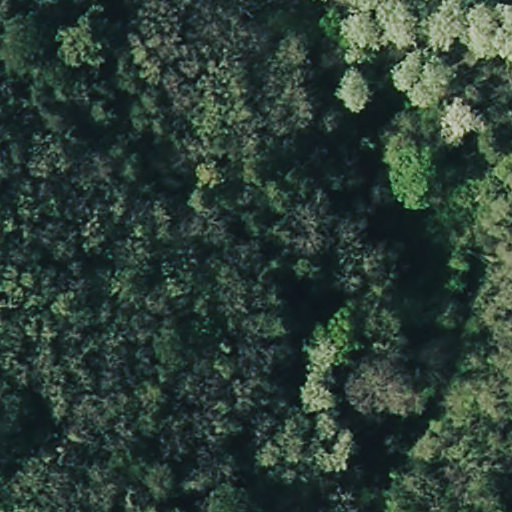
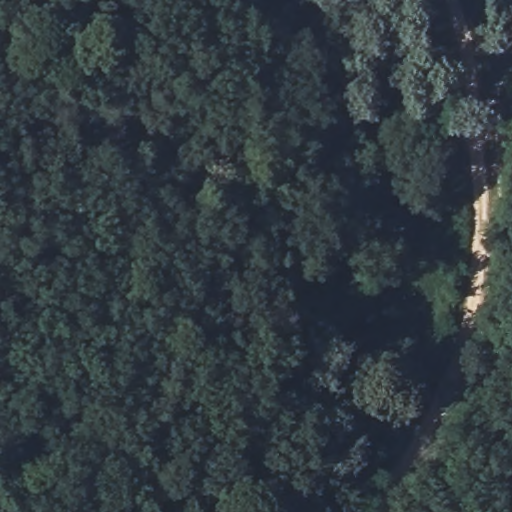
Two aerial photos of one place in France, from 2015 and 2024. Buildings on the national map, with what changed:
[]

